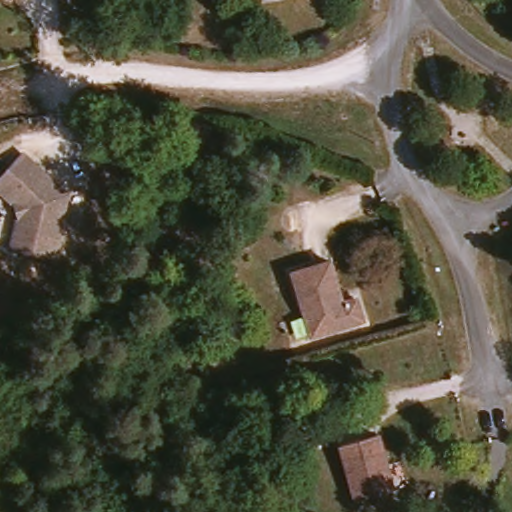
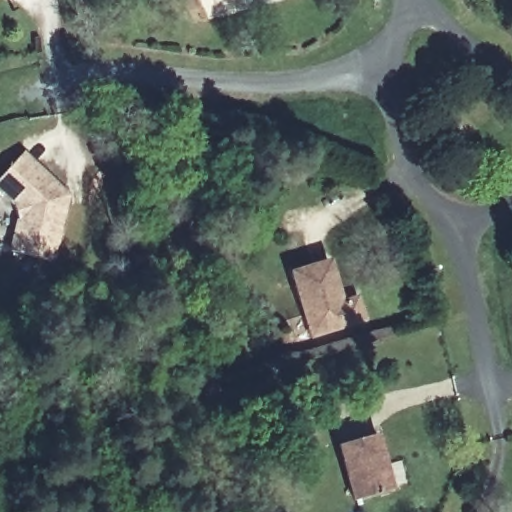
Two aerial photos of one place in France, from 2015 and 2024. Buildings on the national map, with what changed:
unchanged [(22,221),(19,203),(0,186),(0,182),(26,154),(57,182),(69,214),(63,240),(58,259),(36,255),(17,251),(22,221)]
unchanged [(363,321),(310,338),(290,272),(330,260),(344,303),(356,300),(363,321)]
unchanged [(385,468),(392,492),(356,502),(340,445),(380,434),(389,467),(385,468)]

